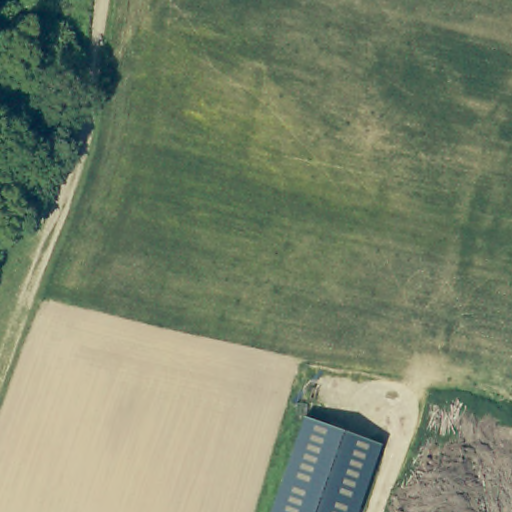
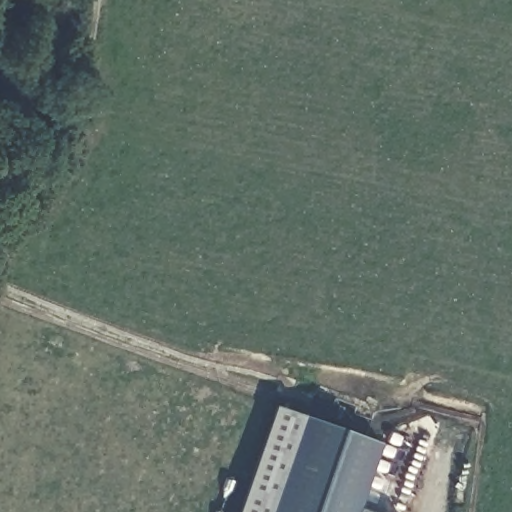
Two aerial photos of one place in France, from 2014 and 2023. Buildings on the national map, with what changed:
new [(274,406),(303,416),(269,512),(237,512),(274,406)]
unchanged [(355,512),(269,512),(303,416),(380,443),(355,512)]
new [(356,508),(367,512),(355,512),(356,508)]

